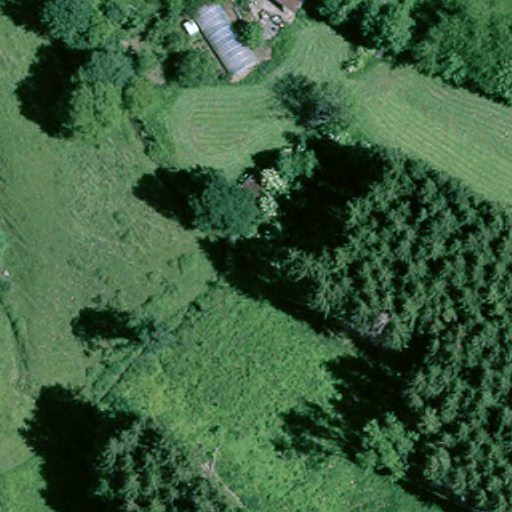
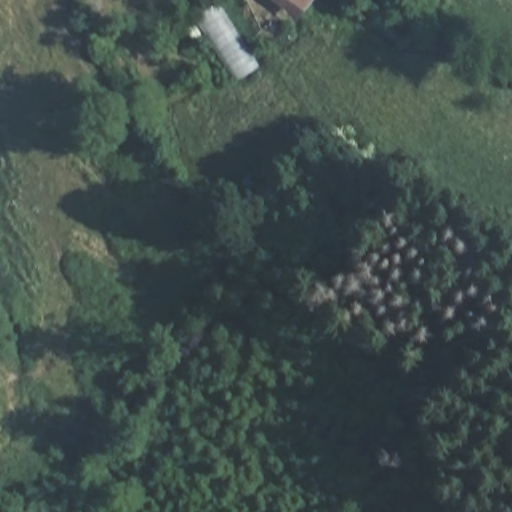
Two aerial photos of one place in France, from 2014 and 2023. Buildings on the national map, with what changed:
unchanged [(267,0),(312,0),(292,22),(267,0)]

